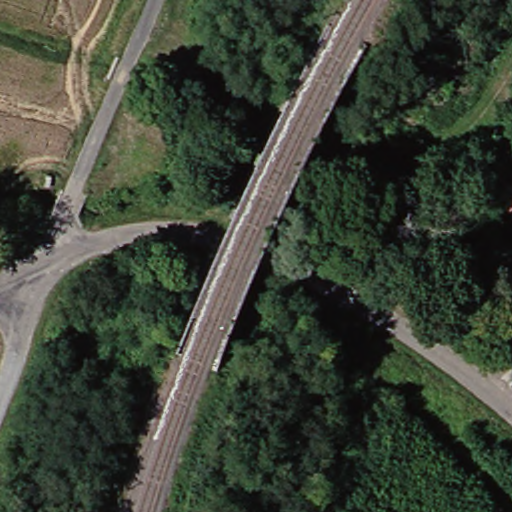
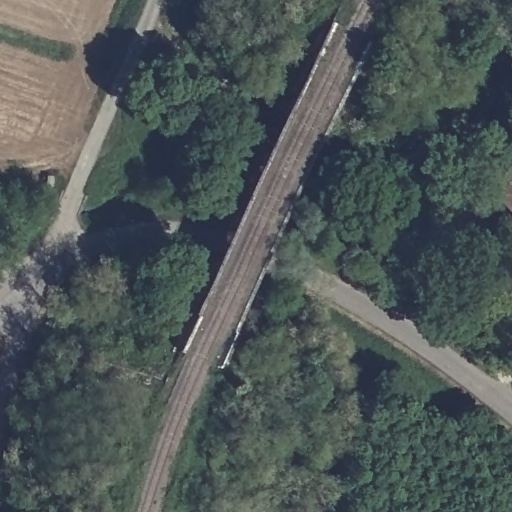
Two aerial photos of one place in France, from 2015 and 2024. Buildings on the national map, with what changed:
unchanged [(497,207),(491,204),(512,181),(512,216),(508,213),(497,207)]

